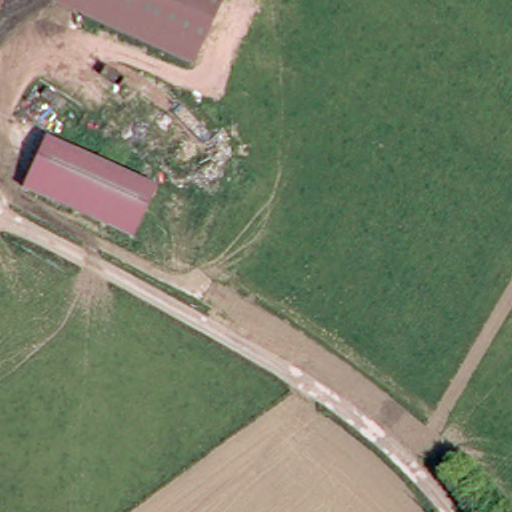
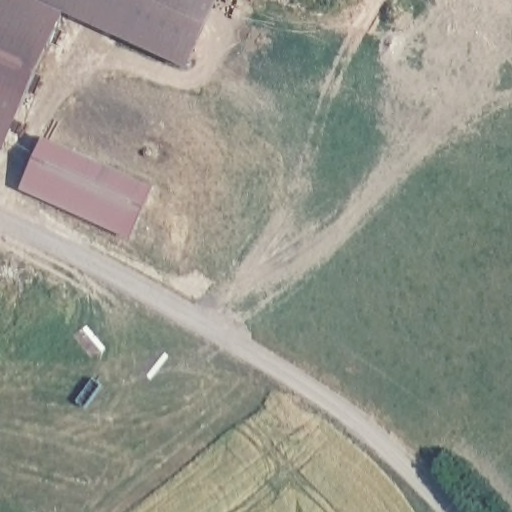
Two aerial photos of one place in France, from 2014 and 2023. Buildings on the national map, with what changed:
new [(67,11),(5,149),(0,147),(0,0),(41,0),(67,11)]
unchanged [(194,68),(41,0),(222,0),(194,68)]
unchanged [(131,238),(22,189),(46,135),(152,185),(131,238)]

